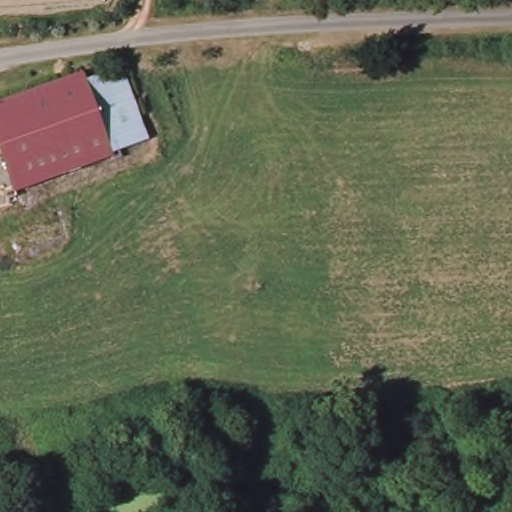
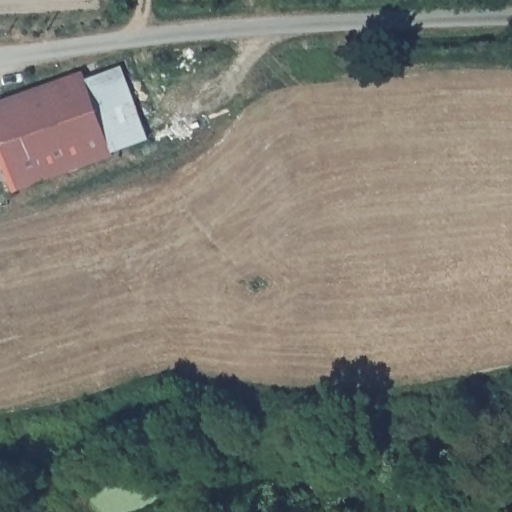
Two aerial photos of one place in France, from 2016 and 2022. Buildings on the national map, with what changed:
unchanged [(0,128),(0,93),(50,80),(81,72),(89,70),(95,74),(96,81),(114,159),(115,163),(56,175),(15,184),(0,128)]
unchanged [(132,71),(152,151),(114,159),(96,81),(132,71)]

